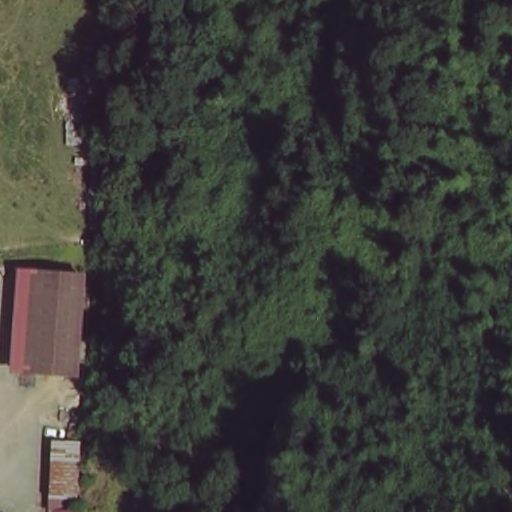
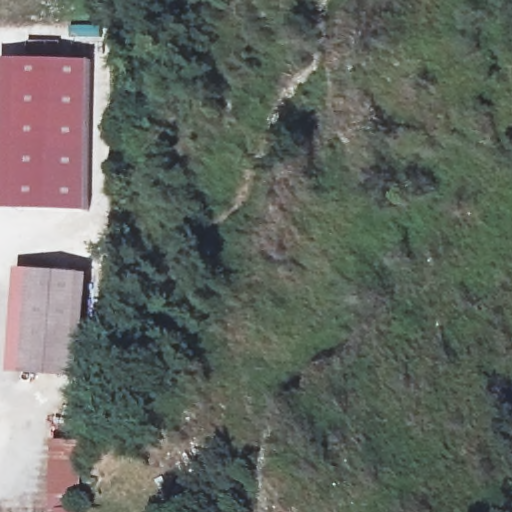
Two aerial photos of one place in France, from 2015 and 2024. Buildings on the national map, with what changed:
new [(77,51),(75,201),(5,200),(7,50),(77,51)]
unchanged [(70,271),(64,373),(9,371),(17,267),(70,271)]
unchanged [(80,472),(81,491),(75,492),(52,493),(50,439),(79,437),(80,472)]
unchanged [(72,511),(72,512),(55,512),(55,504),(65,507),(72,511)]

